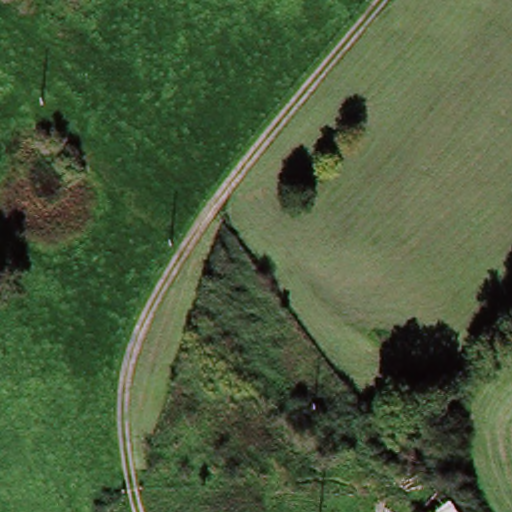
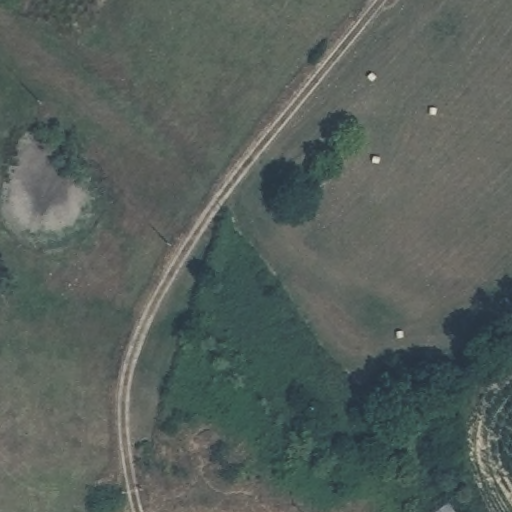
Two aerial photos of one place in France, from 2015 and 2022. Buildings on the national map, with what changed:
unchanged [(428,480),(453,512),(410,512),(379,474),(405,453),(428,480)]

